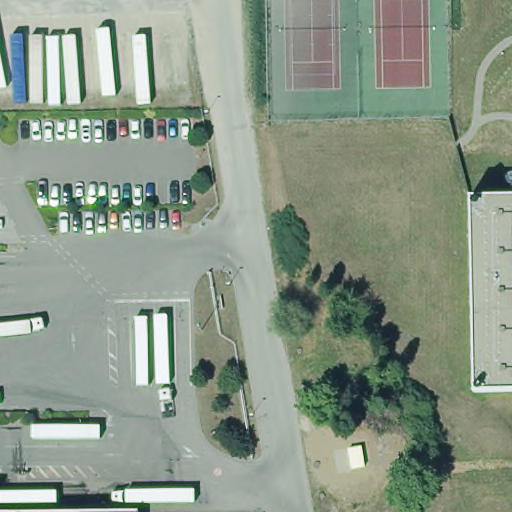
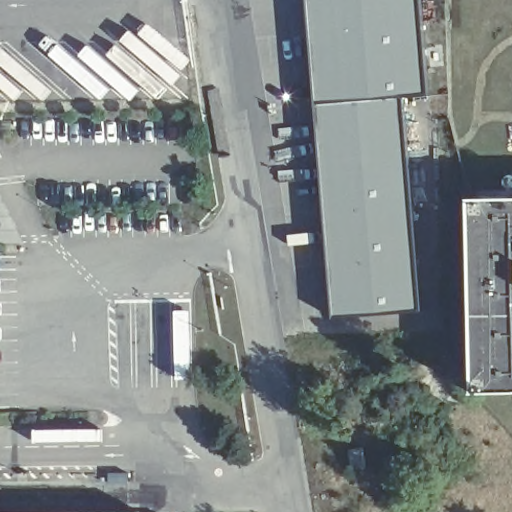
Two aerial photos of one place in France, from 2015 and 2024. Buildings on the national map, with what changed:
new [(421,98),(395,100),(414,311),(327,318),(302,0),(413,0),(421,98)]
unchanged [(472,195),(512,194),(512,269),(473,270),(472,195)]
unchanged [(512,269),(512,351),(474,352),(473,270),(512,269)]
unchanged [(475,389),(474,352),(512,351),(512,388),(475,389)]

